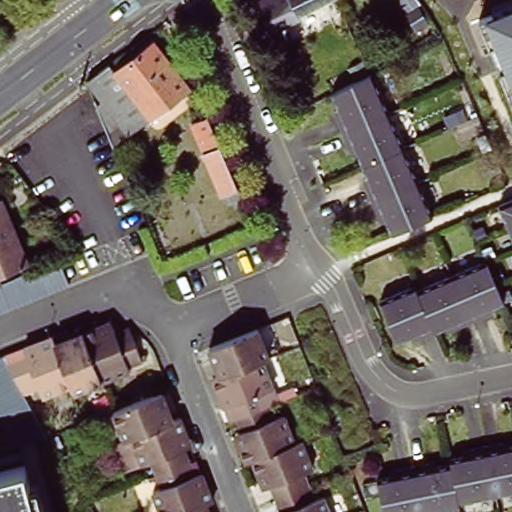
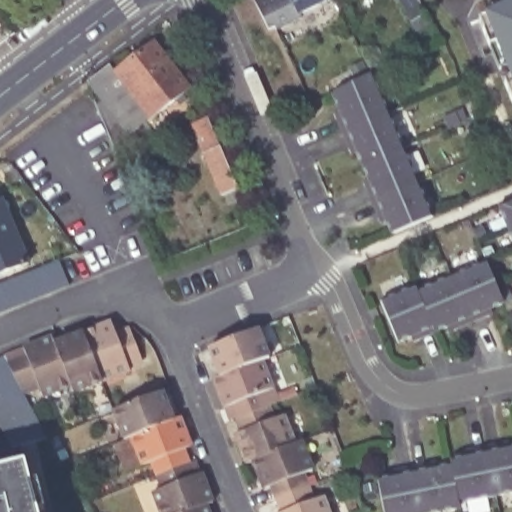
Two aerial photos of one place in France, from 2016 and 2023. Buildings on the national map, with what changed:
unchanged [(306,10),(309,16),(279,30),(278,27),(272,29),(257,0),(327,0),(306,10)]
unchanged [(484,12),(512,0),(512,80),(484,12)]
unchanged [(417,6),(429,25),(417,33),(404,14),(417,6)]
unchanged [(100,105),(106,100),(88,81),(112,63),(116,69),(156,39),(191,84),(128,132),(127,131),(114,141),(100,105)]
unchanged [(339,106),(331,92),(371,72),(371,71),(389,111),(344,130),(337,114),(334,108),(339,106)]
unchanged [(373,199),(366,182),(364,178),(369,176),(363,162),(358,152),(356,149),(353,150),(351,145),(344,130),(389,111),(399,134),(404,145),(419,180),(424,191),(434,214),(404,227),(393,232),(387,219),(383,221),(380,215),(376,207),(373,199)]
unchanged [(241,188),(224,195),(196,124),(211,117),(241,188)]
unchanged [(29,259),(0,274),(0,198),(3,197),(29,259)]
unchanged [(501,204),(512,199),(512,233),(501,204)]
unchanged [(59,257),(70,279),(0,309),(0,279),(1,281),(59,257)]
unchanged [(483,319),(468,325),(448,279),(483,265),(484,270),(493,291),(500,307),(488,312),(489,317),(483,319)]
unchanged [(392,347),(374,304),(412,289),(413,293),(422,289),(448,279),(468,325),(452,331),(446,334),(444,330),(433,335),(430,336),(416,342),(408,345),(407,341),(392,347)]
unchanged [(109,322),(116,336),(131,332),(139,364),(45,394),(40,384),(21,389),(6,353),(109,322)]
unchanged [(254,327),(266,356),(259,358),(217,375),(206,346),(254,327)]
unchanged [(44,431),(13,438),(0,413),(0,357),(6,353),(21,389),(44,431)]
unchanged [(217,375),(259,358),(269,386),(259,391),(265,406),(234,418),(228,403),(221,405),(210,377),(217,375)]
unchanged [(156,394),(161,391),(173,420),(131,436),(123,439),(113,410),(156,394)]
unchanged [(281,415),(291,443),(250,459),(243,461),(232,434),(239,431),(234,418),(265,406),(270,419),(281,415)]
unchanged [(156,475),(150,461),(141,464),(131,436),(173,420),(179,417),(189,446),(183,448),(188,462),(156,475)]
unchanged [(291,443),(300,439),(311,466),(301,470),(307,485),(274,498),(268,482),(261,485),(250,459),(291,443)]
unchanged [(434,467),(435,471),(452,468),(451,463),(463,461),(462,456),(464,456),(467,455),(482,452),(499,449),(504,448),(504,453),(512,451),(512,499),(492,502),(477,505),(461,509),(461,512),(422,512),(413,471),(429,468),(434,467)]
unchanged [(159,512),(151,491),(161,488),(156,475),(188,462),(193,475),(200,473),(211,502),(204,505),(186,512),(159,512)]
unchanged [(0,512),(0,471),(24,464),(37,512),(0,512)]
unchanged [(383,512),(378,483),(392,481),(391,475),(395,474),(413,471),(422,512),(383,512)]
unchanged [(329,512),(277,512),(279,511),(274,498),(307,485),(312,498),(322,495),(329,512)]
unchanged [(207,512),(186,512),(204,505),(207,512)]

